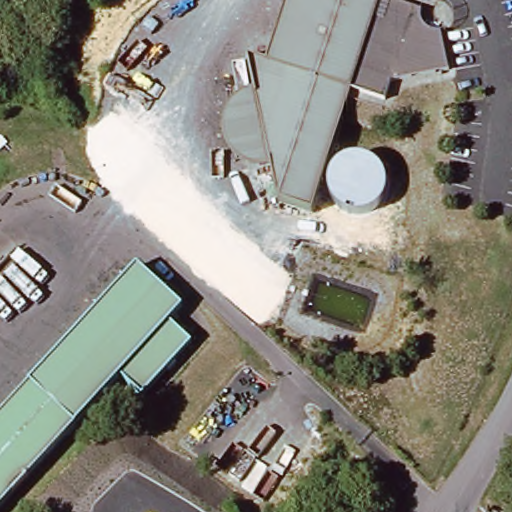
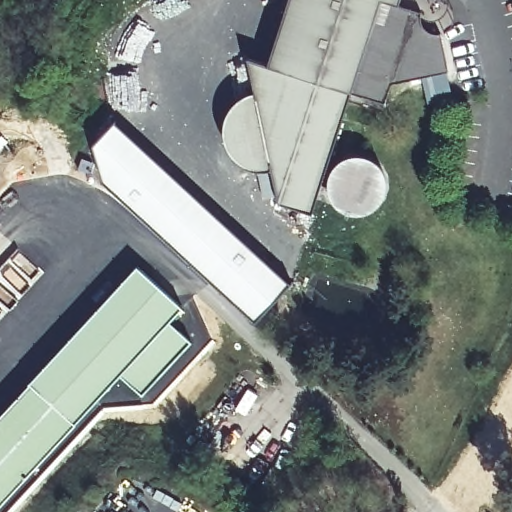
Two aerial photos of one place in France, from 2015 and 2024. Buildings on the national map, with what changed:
unchanged [(454,3),(455,24),(442,28),(451,71),(395,84),(389,101),(355,89),(315,211),(281,202),(275,170),(259,91),(252,57),(271,63),(291,0),(445,0),(454,3)]
unchanged [(232,110),(237,103),(244,97),(252,93),(259,91),(275,170),(270,171),(260,170),(248,167),(237,157),(230,148),(227,135),(227,121),(232,110)]
new [(107,124),(283,283),(247,322),(95,186),(84,149),(107,124)]
unchanged [(133,267),(180,307),(167,321),(190,341),(142,397),(120,378),(106,393),(61,352),(133,267)]
unchanged [(79,426),(32,386),(61,352),(106,393),(79,426)]
unchanged [(79,426),(5,512),(0,512),(0,423),(32,386),(79,426)]

